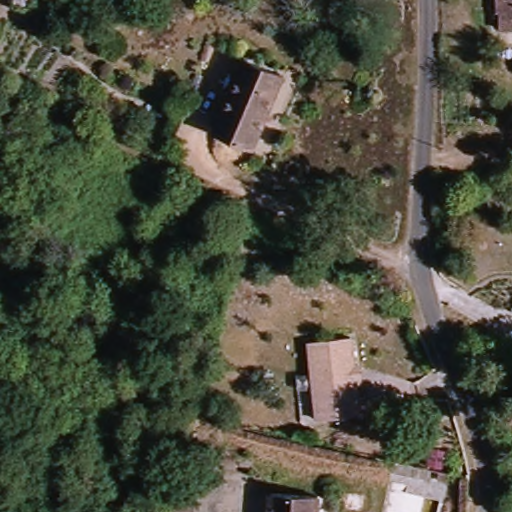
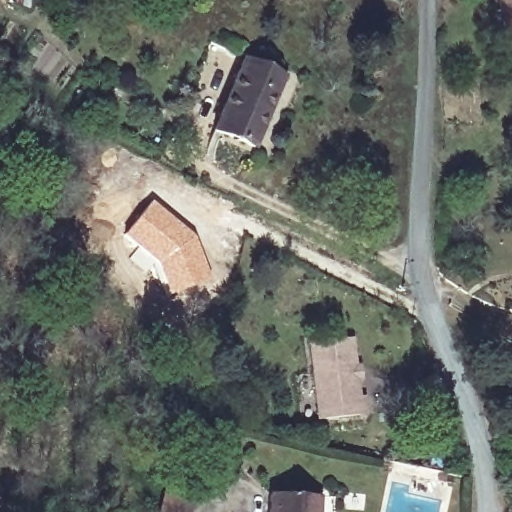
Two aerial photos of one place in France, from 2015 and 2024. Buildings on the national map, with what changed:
unchanged [(493,7),(491,7),(491,0),(512,0),(512,24),(494,25),(493,7)]
unchanged [(293,73),(263,146),(225,129),(256,58),(293,73)]
new [(151,199),(195,238),(199,247),(210,279),(167,295),(155,263),(122,234),(151,199)]
unchanged [(369,416),(327,419),(321,343),(363,339),(369,416)]
unchanged [(197,512),(169,512),(181,474),(207,482),(197,512)]
unchanged [(280,512),(282,479),(329,482),(328,512),(280,512)]

